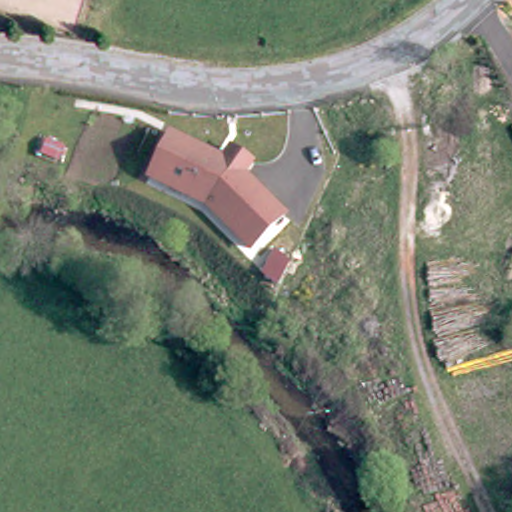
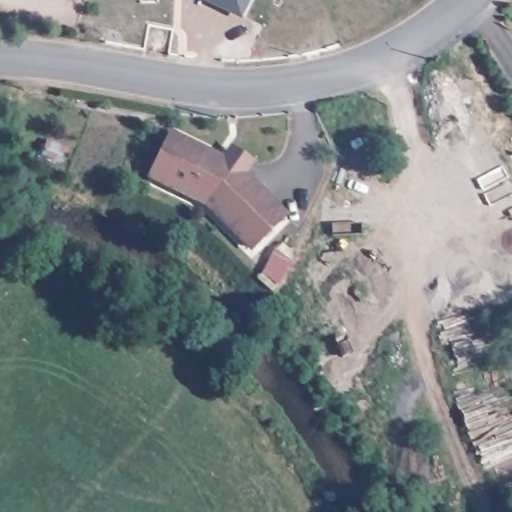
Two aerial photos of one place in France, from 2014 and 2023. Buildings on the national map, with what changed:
new [(195,1),(196,0),(254,0),(242,24),(195,1)]
unchanged [(172,130),(224,156),(233,144),(260,162),(250,175),(292,215),(251,256),(205,209),(144,181),(172,130)]

